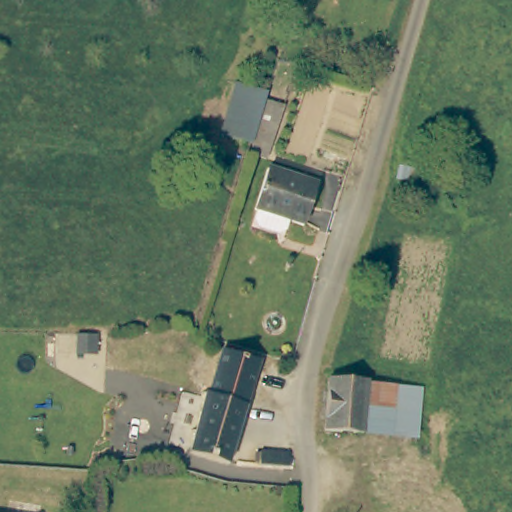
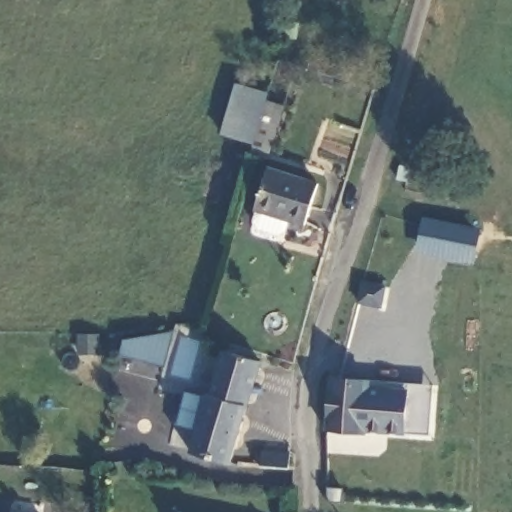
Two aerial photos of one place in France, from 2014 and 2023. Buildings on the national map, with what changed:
unchanged [(243,140),(216,132),(231,80),(257,88),(254,100),(270,106),(259,144),(243,140)]
unchanged [(300,220),(282,215),(279,224),(275,226),(269,227),(264,226),(258,224),(254,220),(251,215),(266,161),(316,175),(300,220)]
new [(473,264),(416,253),(422,217),(479,228),(473,264)]
unchanged [(243,405),(207,396),(217,352),(253,361),(243,405)]
unchanged [(361,381),(361,383),(357,434),(326,431),(320,430),(327,377),(361,381)]
unchanged [(361,383),(390,388),(386,438),(357,434),(361,383)]
unchanged [(423,390),(419,440),(386,438),(390,388),(423,390)]
unchanged [(191,453),(204,396),(207,396),(243,405),(229,464),(191,453)]
unchanged [(288,473),(275,472),(261,472),(262,455),(275,455),(288,456),(288,473)]

